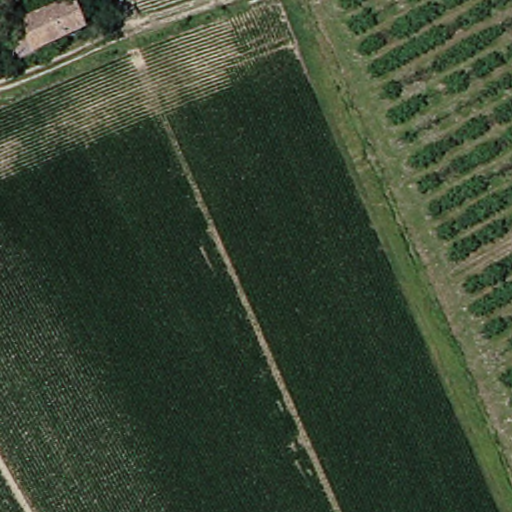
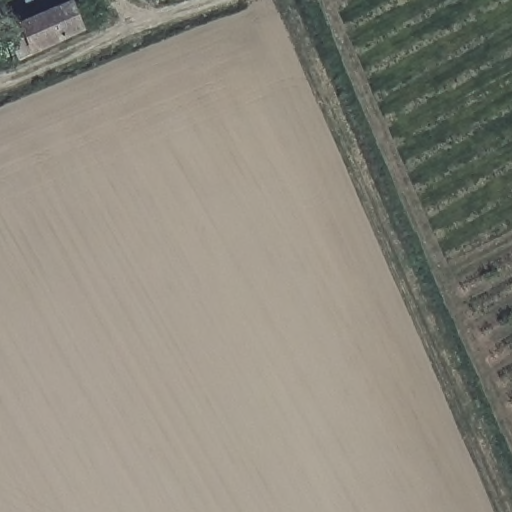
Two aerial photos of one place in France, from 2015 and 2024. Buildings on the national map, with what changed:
unchanged [(26,24),(73,0),(74,0),(88,29),(39,53),(26,24)]

